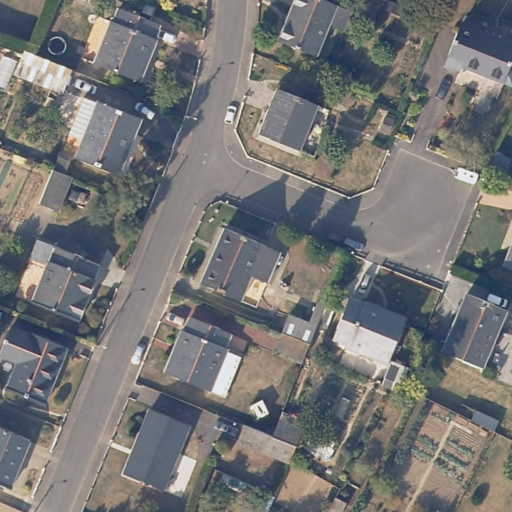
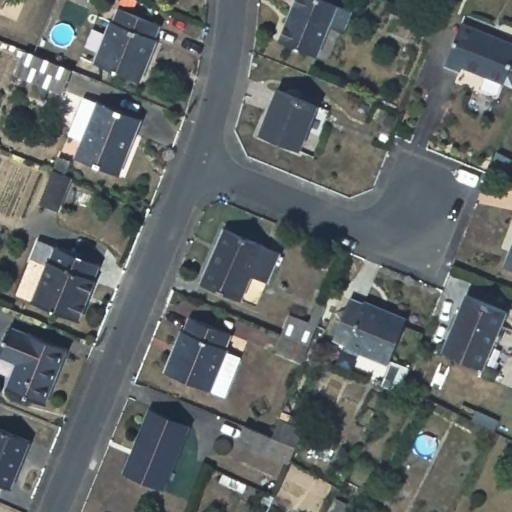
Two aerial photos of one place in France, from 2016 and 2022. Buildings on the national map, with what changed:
unchanged [(342,7),(335,26),(321,19),(308,52),(272,36),(286,0),(326,0),(342,7)]
unchanged [(157,23),(152,36),(155,38),(147,56),(143,54),(132,78),(91,61),(108,19),(112,20),(116,7),(157,23)]
unchanged [(511,40),(505,59),(512,62),(512,70),(506,82),(456,59),(454,62),(440,57),(457,17),(511,40)]
unchanged [(34,50),(70,64),(62,87),(15,67),(22,45),(34,50)]
unchanged [(315,100),(295,145),(257,127),(276,82),(315,100)]
unchanged [(99,99),(100,97),(143,114),(122,172),(80,155),(86,138),(71,132),(85,94),(99,99)]
unchanged [(58,152),(71,157),(66,172),(72,174),(59,209),(40,202),(52,167),(53,167),(58,152)]
unchanged [(232,296),(192,279),(214,221),(270,244),(257,275),(247,302),(232,296)]
unchanged [(498,262),(512,226),(512,267),(498,262)]
unchanged [(100,259),(94,274),(97,276),(80,317),(33,297),(47,260),(30,252),(37,232),(100,259)]
unchanged [(439,348),(460,289),(500,304),(512,309),(512,312),(502,343),(487,338),(478,363),(439,348)]
unchanged [(360,297),(361,293),(403,310),(385,359),(342,342),(344,338),(331,332),(346,291),(360,297)]
unchanged [(283,325),(282,324),(289,306),(310,315),(317,298),(325,302),(328,292),(337,296),(327,322),(318,317),(311,337),(303,357),(276,346),(283,325)]
unchanged [(227,328),(222,342),(227,344),(209,387),(162,367),(179,324),(182,325),(187,312),(227,328)]
unchanged [(27,331),(65,346),(44,403),(6,388),(16,361),(0,355),(0,353),(9,327),(26,333),(27,331)]
unchanged [(184,417),(161,483),(122,468),(145,402),(184,417)]
unchanged [(471,408),(494,417),(491,427),(467,418),(471,408)]
unchanged [(289,464),(237,443),(244,425),(275,437),(282,417),(303,427),(296,447),(292,460),(289,464)]
unchanged [(10,486),(0,482),(0,424),(29,436),(10,486)]
unchanged [(349,480),(340,499),(330,492),(340,473),(349,480)]

